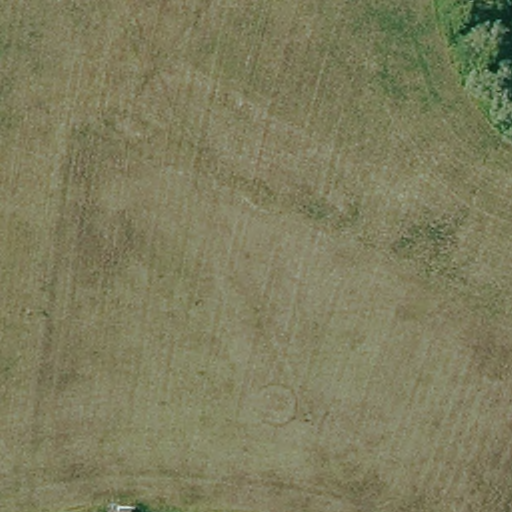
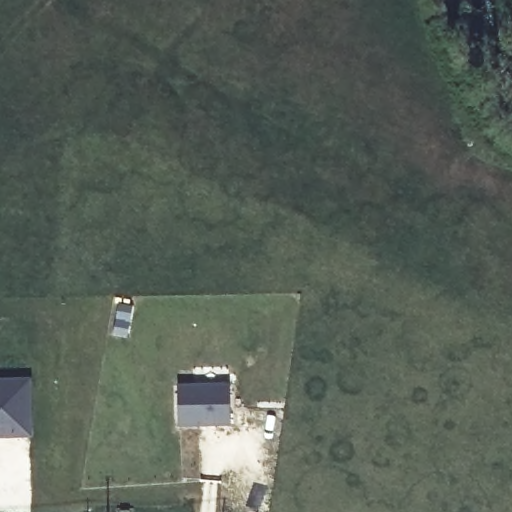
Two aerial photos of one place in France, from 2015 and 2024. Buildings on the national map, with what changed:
new [(33,376),(33,437),(0,438),(0,377),(33,376)]
new [(228,386),(228,427),(176,427),(175,387),(228,386)]

